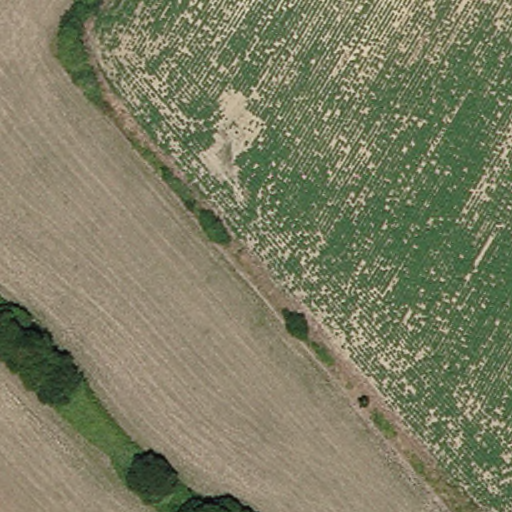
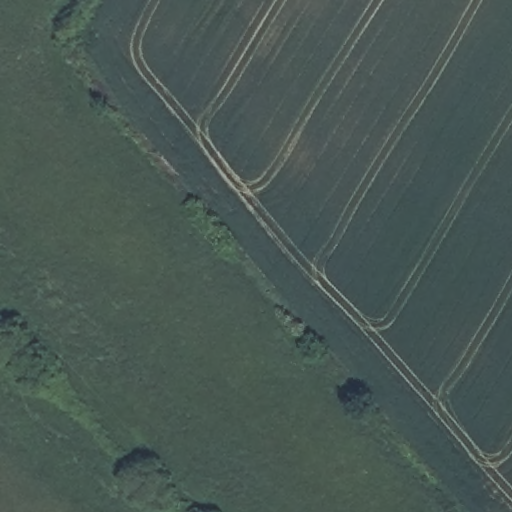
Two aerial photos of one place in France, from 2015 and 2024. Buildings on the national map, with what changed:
[]

